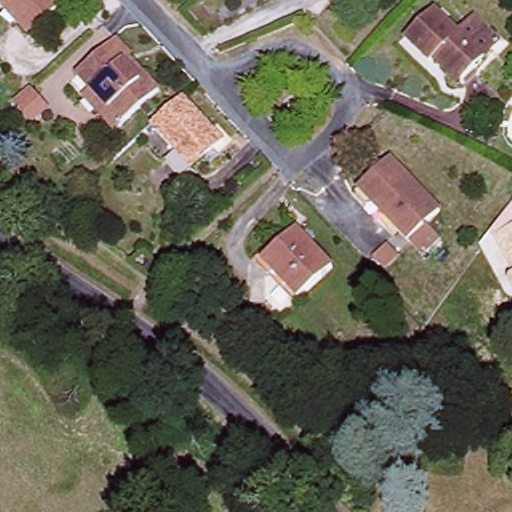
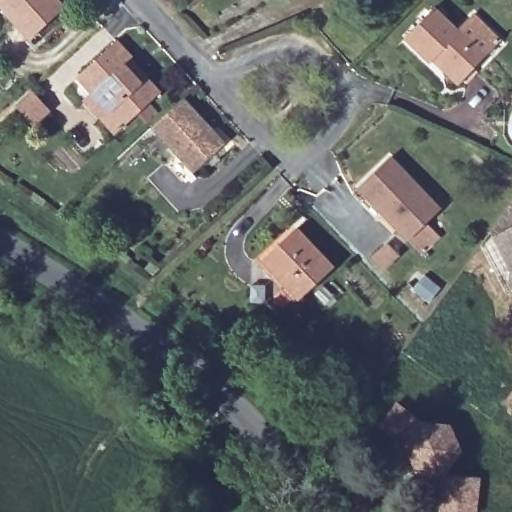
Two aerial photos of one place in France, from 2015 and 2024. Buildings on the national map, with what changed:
unchanged [(64,7),(32,37),(0,3),(0,0),(58,0),(64,7)]
unchanged [(432,59),(430,62),(407,39),(436,9),(459,32),(473,16),(497,39),(482,54),(470,67),(467,70),(456,82),(432,59)]
unchanged [(85,102),(94,94),(80,77),(118,41),(129,53),(127,56),(145,75),(161,92),(124,127),(116,134),(85,102)]
unchanged [(33,97),(49,115),(35,128),(19,111),(33,97)]
unchanged [(169,165),(180,154),(154,125),(182,99),(222,142),(195,169),(184,179),(169,165)]
unchanged [(423,252),(410,240),(399,227),(391,235),(351,194),(359,187),(390,156),(440,209),(427,222),(440,235),(423,252)]
unchanged [(510,274),(490,232),(512,202),(512,282),(510,274)]
unchanged [(297,230),(330,263),(297,295),(265,261),(297,230)]
new [(421,423),(448,427),(459,452),(451,462),(457,475),(477,477),(474,512),(448,512),(439,511),(443,473),(416,470),(405,445),(379,426),(395,405),(421,423)]

